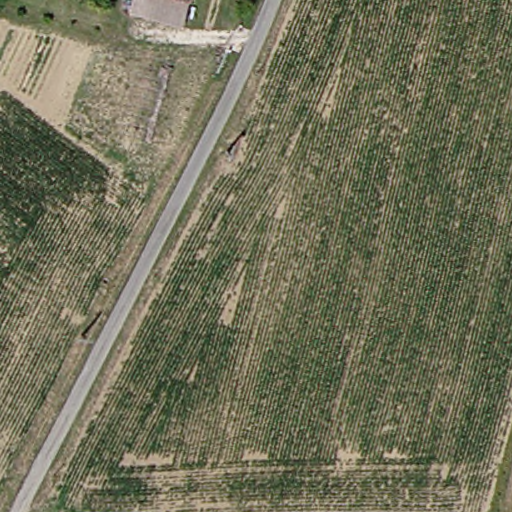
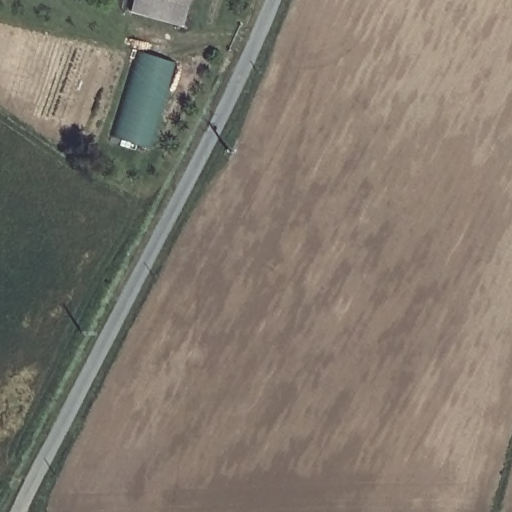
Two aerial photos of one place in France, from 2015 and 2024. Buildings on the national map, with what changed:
unchanged [(184,10),(135,0),(186,0),(184,10)]
new [(110,136),(136,51),(175,62),(146,146),(110,136)]

